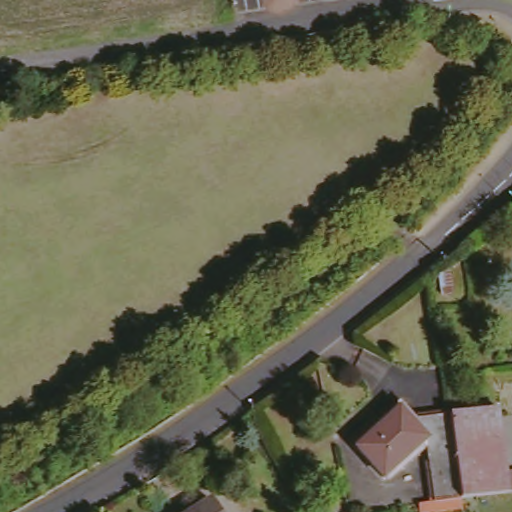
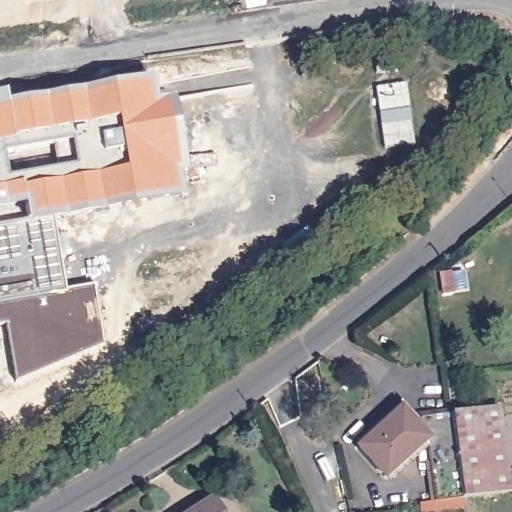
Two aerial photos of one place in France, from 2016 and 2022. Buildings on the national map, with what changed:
new [(10,84),(14,99),(157,72),(160,94),(177,92),(185,190),(53,217),(63,289),(94,283),(103,344),(18,381),(7,321),(0,323),(0,86),(10,84)]
unchanged [(457,418),(507,410),(512,466),(512,494),(468,499),(457,418)]
unchanged [(460,512),(427,512),(427,504),(442,502),(432,445),(390,482),(362,450),(407,412),(417,425),(457,418),(468,499),(470,510),(460,512)]
unchanged [(226,512),(202,512),(219,501),(226,512)]

